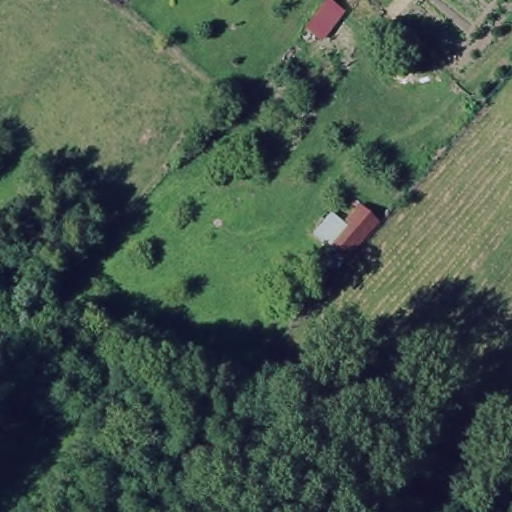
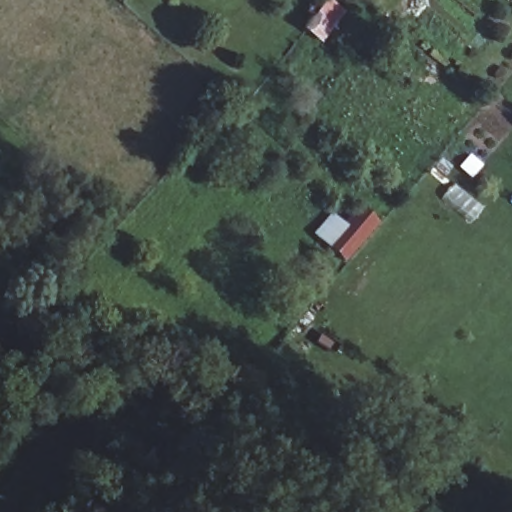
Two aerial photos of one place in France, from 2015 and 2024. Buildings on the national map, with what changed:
unchanged [(323,0),(326,0),(343,15),(319,43),(300,30),(323,0)]
unchanged [(305,237),(325,212),(336,218),(352,202),(376,221),(341,263),(305,237)]

